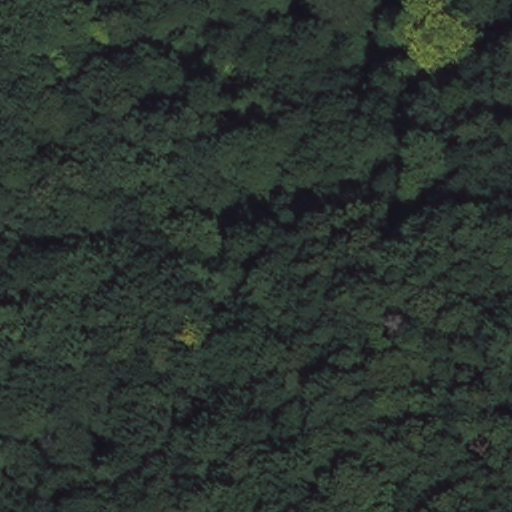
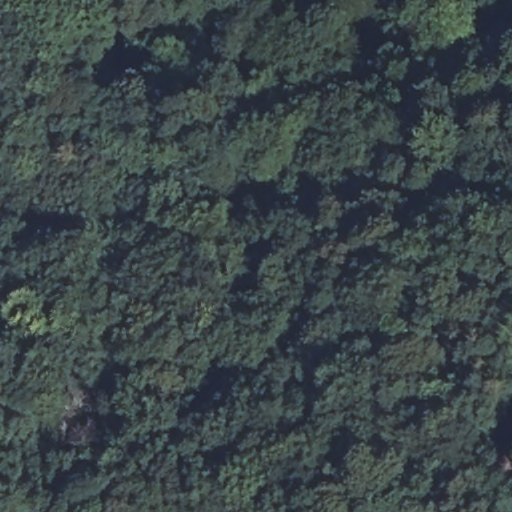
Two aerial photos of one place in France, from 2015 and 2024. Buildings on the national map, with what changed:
[]

